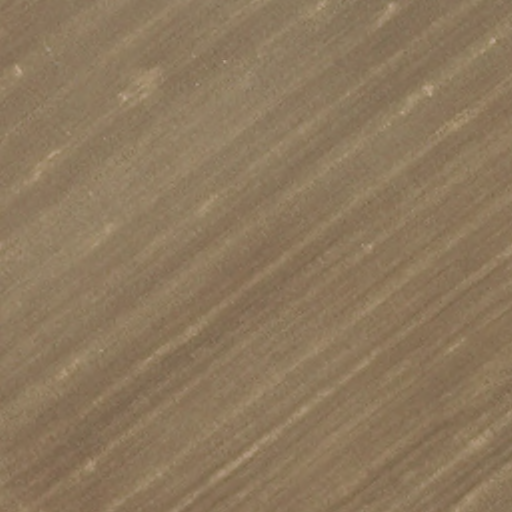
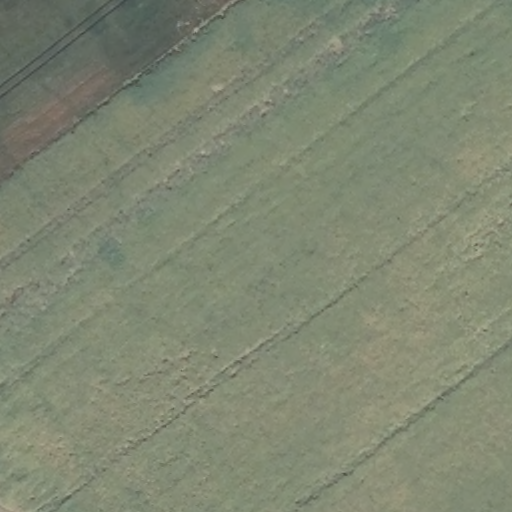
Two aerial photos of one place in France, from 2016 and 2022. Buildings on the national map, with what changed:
[]

